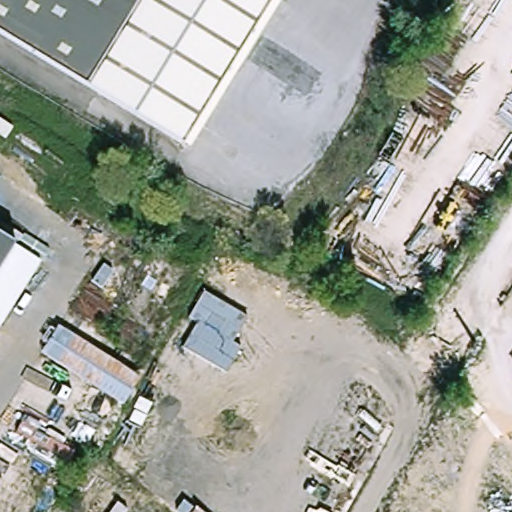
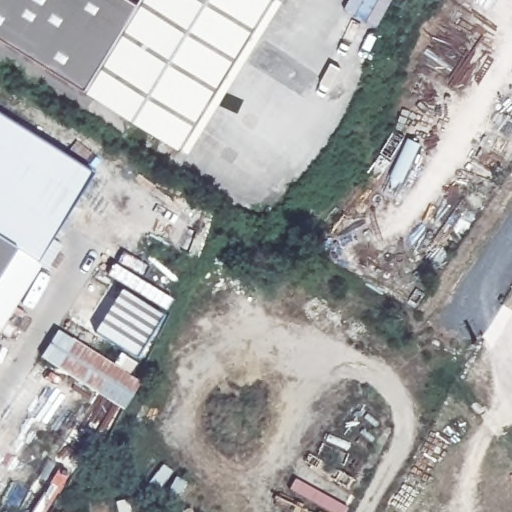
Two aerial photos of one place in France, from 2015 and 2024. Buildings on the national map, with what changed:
unchanged [(134,2),(83,87),(80,85),(24,50),(0,35),(0,0),(132,0),(134,2)]
unchanged [(178,142),(171,151),(131,117),(83,87),(134,2),(138,4),(140,0),(283,0),(178,142)]
new [(92,174),(38,262),(20,250),(0,237),(0,115),(92,174)]
unchanged [(20,250),(0,281),(0,238),(20,250)]
unchanged [(20,250),(43,265),(0,331),(0,281),(20,250)]
new [(162,316),(135,358),(94,331),(120,290),(162,316)]
unchanged [(135,377),(118,406),(41,358),(59,328),(135,377)]
new [(302,466),(356,497),(347,512),(332,512),(290,487),(302,466)]

